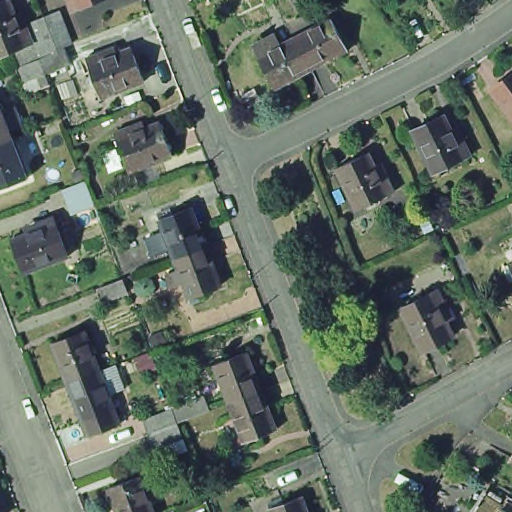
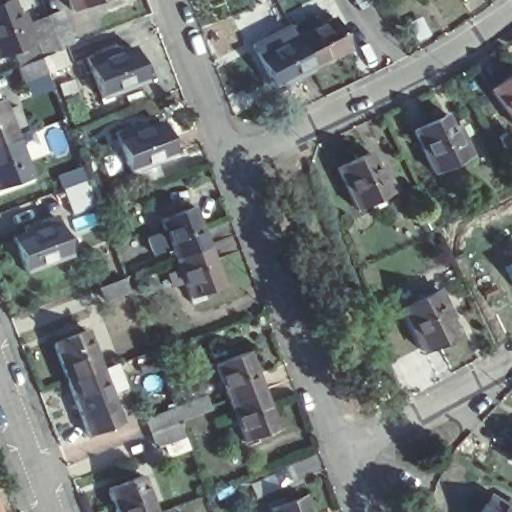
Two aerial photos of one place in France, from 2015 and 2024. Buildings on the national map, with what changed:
unchanged [(16,50),(0,57),(0,6),(14,0),(16,0),(21,14),(27,12),(31,24),(50,17),(65,11),(76,43),(62,49),(45,59),(70,47),(76,63),(50,73),(27,82),(21,68),(22,67),(16,50)]
unchanged [(72,10),(68,0),(99,0),(72,10)]
unchanged [(331,23),(348,54),(311,74),(295,42),(331,23)]
unchanged [(295,42),(311,74),(275,93),(258,61),(252,50),(275,38),(281,49),(295,42)]
unchanged [(145,82),(101,98),(86,58),(103,52),(115,48),(117,53),(132,47),(145,82)]
unchanged [(512,74),(512,120),(490,90),(512,74)]
unchanged [(12,133),(0,138),(0,100),(12,133)]
unchanged [(457,127),(463,139),(471,155),(433,173),(412,131),(445,115),(452,130),(457,127)]
unchanged [(173,156),(130,173),(115,133),(131,126),(143,122),(145,127),(160,122),(173,156)]
unchanged [(12,133),(27,172),(0,183),(0,138),(12,133)]
unchanged [(356,210),(335,168),(369,152),(376,167),(381,164),(386,175),(395,192),(356,210)]
unchanged [(25,179),(29,189),(21,192),(18,182),(25,179)]
unchanged [(86,180),(96,205),(96,206),(72,214),(62,189),(86,180)]
unchanged [(159,219),(192,207),(207,246),(196,250),(174,258),(159,219)]
unchanged [(75,261),(30,278),(17,243),(32,238),(30,232),(42,228),(59,221),(75,261)]
unchanged [(222,284),(189,297),(174,258),(196,250),(207,246),(222,284)]
unchanged [(512,264),(512,271),(509,265),(512,264)]
unchanged [(128,291),(105,300),(100,287),(123,278),(128,291)]
unchanged [(452,317),(447,320),(455,335),(422,351),(400,309),(438,290),(447,307),(452,317)]
unchanged [(95,374),(84,379),(62,387),(47,348),(81,336),(95,374)]
unchanged [(263,390),(230,403),(215,364),(248,351),(263,390)]
unchanged [(111,368),(121,393),(105,399),(110,413),(77,426),(62,387),(84,379),(95,374),(111,368)]
unchanged [(277,429),(244,442),(230,403),(263,390),(277,429)]
unchanged [(183,436),(157,446),(152,432),(147,419),(173,409),(203,397),(208,410),(178,422),(183,435),(183,436)]
unchanged [(512,464),(512,466),(511,465),(512,464)]
unchanged [(117,512),(107,488),(141,475),(155,512),(117,512)]
unchanged [(270,512),(270,509),(303,496),(309,512),(270,512)]
unchanged [(502,506),(505,501),(512,505),(512,512),(479,512),(488,497),(502,506)]

